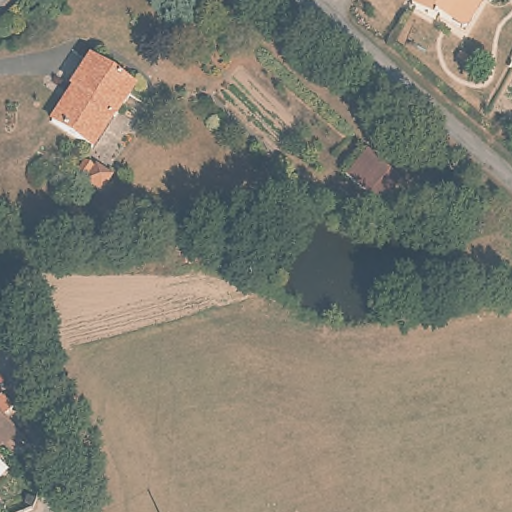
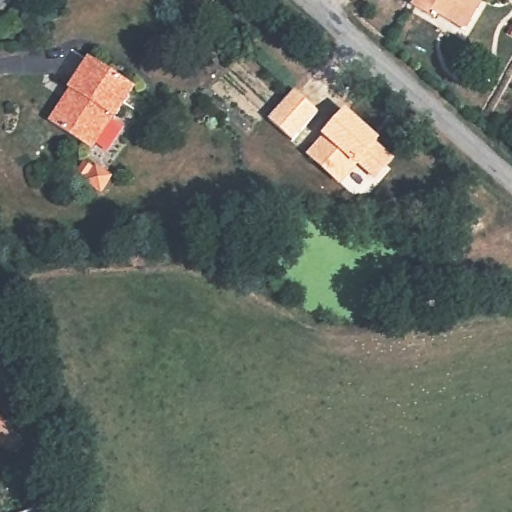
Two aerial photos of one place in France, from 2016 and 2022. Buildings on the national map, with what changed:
unchanged [(480,3),(467,29),(457,29),(437,18),(433,25),(410,12),(416,0),(477,0),(480,3)]
unchanged [(134,84),(94,146),(54,120),(74,87),(71,85),(91,56),(134,84)]
new [(294,141),(269,120),(296,89),(320,111),(294,141)]
new [(377,182),(360,167),(342,187),(305,157),(323,138),(347,109),(382,139),(379,143),(397,160),(377,182)]
demolished [(402,181),(382,205),(349,179),(372,154),(402,181)]
unchanged [(106,170),(97,188),(82,179),(92,162),(106,170)]
unchanged [(15,408),(4,418),(26,438),(12,453),(0,441),(0,398),(3,396),(15,408)]

